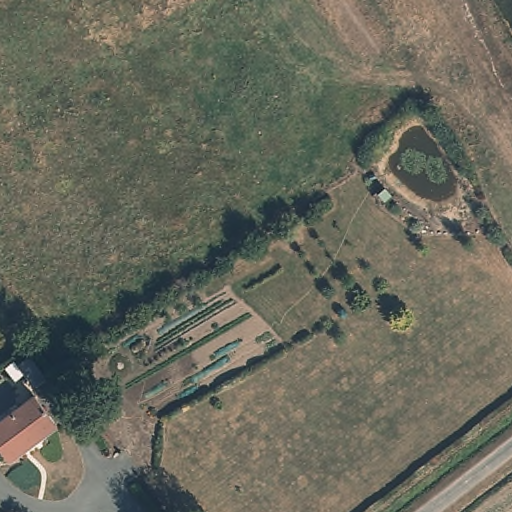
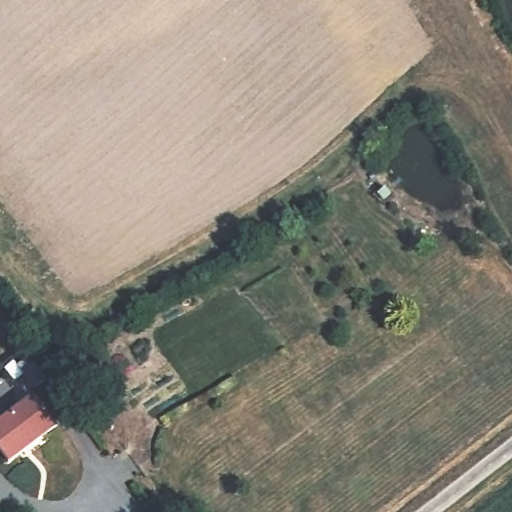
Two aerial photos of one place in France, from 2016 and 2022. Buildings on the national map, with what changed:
unchanged [(46,380),(35,388),(24,375),(15,381),(6,368),(15,362),(18,367),(30,357),(46,380)]
unchanged [(57,427),(9,463),(0,451),(0,423),(35,397),(57,427)]

